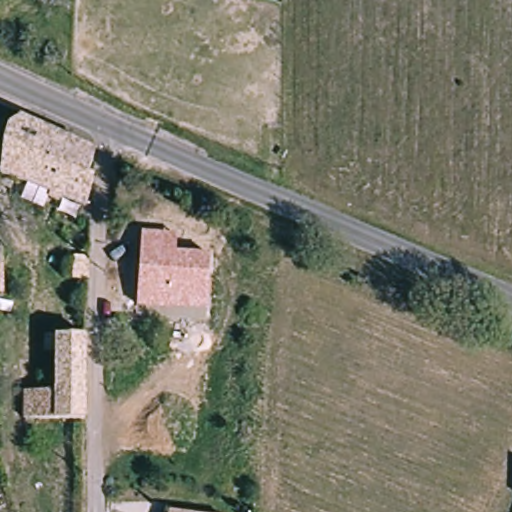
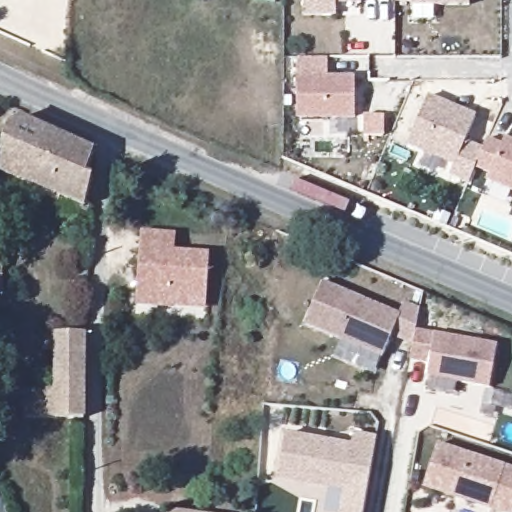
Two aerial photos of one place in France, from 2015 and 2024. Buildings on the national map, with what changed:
new [(276,3),(253,0),(276,0),(276,3)]
new [(362,4),(334,5),(335,16),(303,15),(303,0),(361,0),(362,4)]
new [(467,6),(410,5),(410,4),(395,1),(395,0),(468,0),(467,6)]
new [(355,118),(298,117),(298,77),(354,77),(355,118)]
new [(464,142),(483,150),(487,138),(502,144),(505,137),(512,141),(512,192),(487,181),(492,175),(474,168),(468,181),(449,175),(454,165),(406,146),(427,95),(475,115),(464,142)]
unchanged [(92,219),(80,214),(83,205),(4,171),(5,143),(7,124),(18,119),(95,153),(88,175),(93,178),(86,205),(92,208),(92,219)]
unchanged [(137,306),(143,230),(178,232),(176,251),(210,253),(207,308),(137,306)]
unchanged [(11,245),(11,287),(0,286),(0,244),(11,245)]
unchanged [(94,275),(78,274),(79,252),(95,252),(94,275)]
new [(323,283),(398,313),(403,302),(419,308),(415,327),(413,346),(390,336),(381,358),(304,325),(323,283)]
unchanged [(25,387),(58,388),(59,347),(44,346),(45,330),(87,330),(86,415),(82,416),(83,422),(77,421),(77,416),(58,416),(24,415),(25,387)]
new [(497,345),(489,386),(425,377),(434,334),(497,345)]
new [(362,512),(339,512),(343,490),(277,481),(285,433),(351,443),(353,433),(375,437),(362,512)]
new [(438,443),(512,467),(512,512),(497,512),(423,487),(438,443)]
unchanged [(209,512),(163,512),(164,506),(209,512)]

